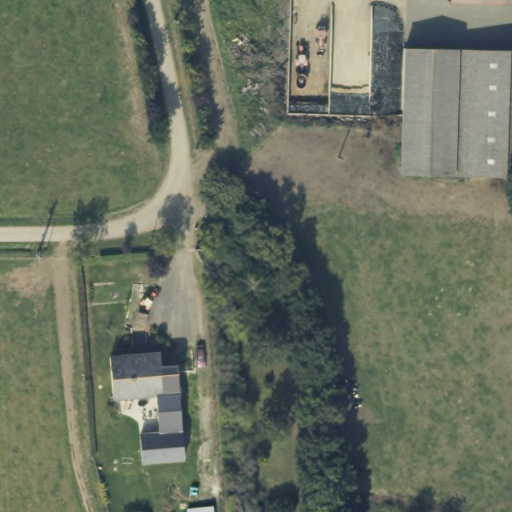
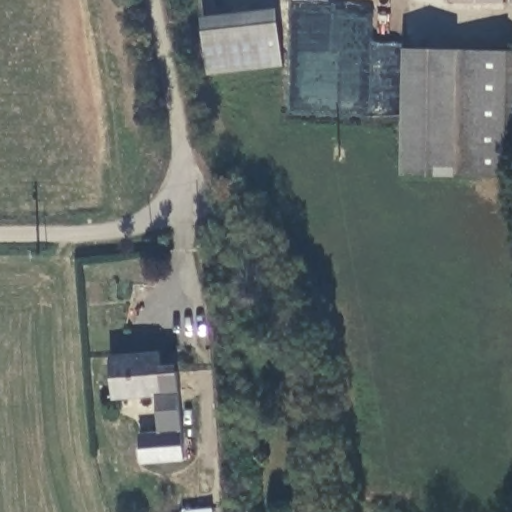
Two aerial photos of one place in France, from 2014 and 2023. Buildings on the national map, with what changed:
unchanged [(505,4),(450,2),(450,0),(506,0),(505,4)]
new [(285,66),(209,76),(201,17),(279,7),(285,66)]
unchanged [(406,172),(407,117),(409,47),(460,49),(511,50),(508,173),(457,173),(406,172)]
unchanged [(160,351),(161,370),(177,370),(182,457),(140,459),(139,432),(158,431),(156,392),(113,395),(111,353),(160,351)]
unchanged [(214,512),(197,512),(213,511),(214,512)]

